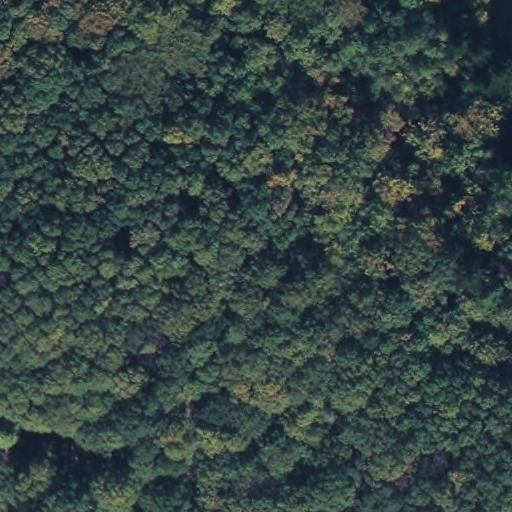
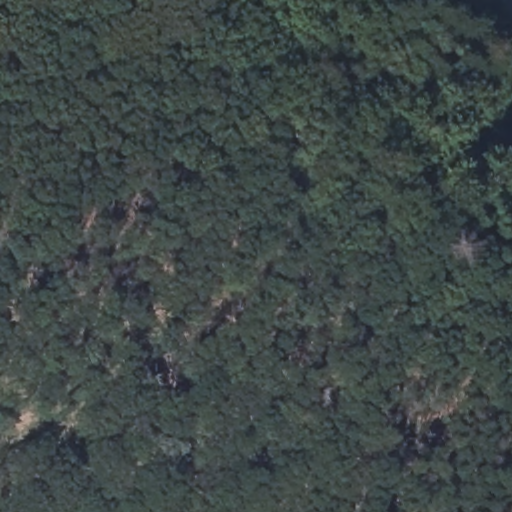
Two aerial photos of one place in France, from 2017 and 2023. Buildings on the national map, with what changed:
unchanged [(73,487),(76,510),(63,512),(39,512),(35,498),(73,487)]

